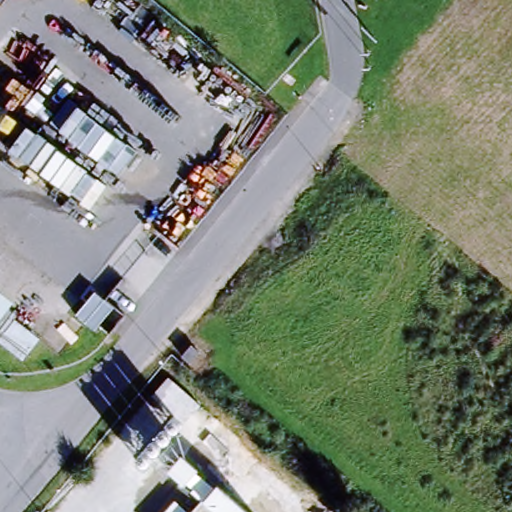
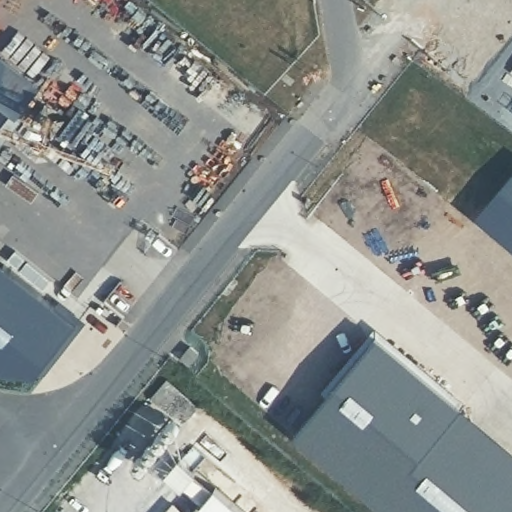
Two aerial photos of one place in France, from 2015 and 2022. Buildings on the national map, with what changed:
new [(512,450),(512,512),(388,512),(296,433),(375,336),(512,450)]

